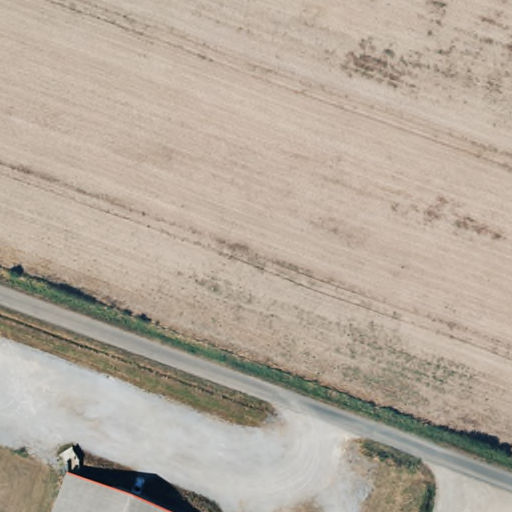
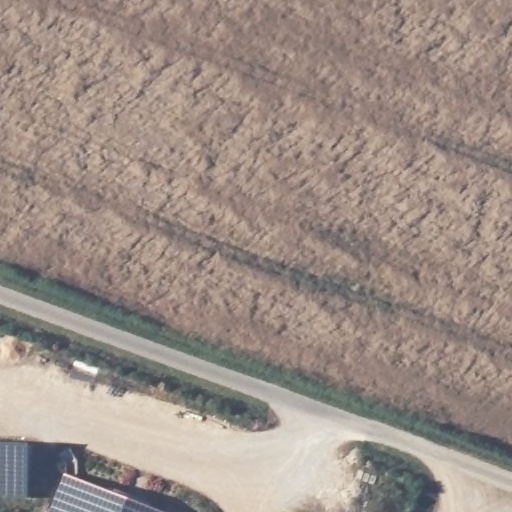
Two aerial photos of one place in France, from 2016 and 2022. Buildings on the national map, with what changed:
new [(30,447),(29,498),(0,497),(0,445),(30,447)]
unchanged [(49,512),(65,472),(166,512),(49,512)]

